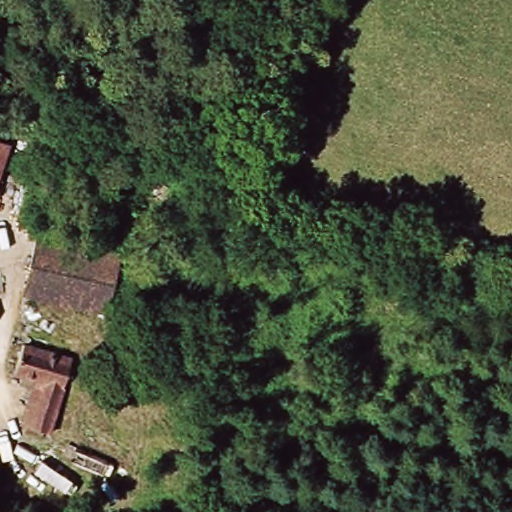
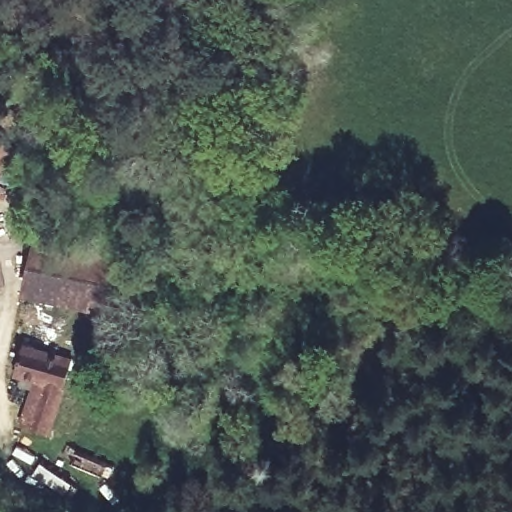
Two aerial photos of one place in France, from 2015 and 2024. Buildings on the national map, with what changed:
unchanged [(0,182),(0,146),(11,151),(0,182)]
unchanged [(122,258),(106,312),(25,288),(41,235),(122,258)]
unchanged [(16,383),(26,358),(75,373),(50,446),(18,435),(34,389),(16,383)]

